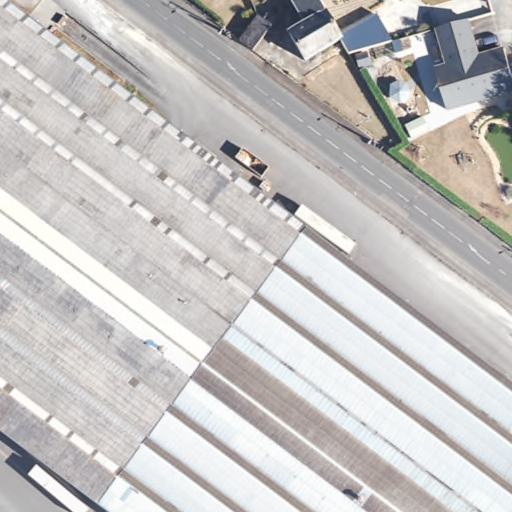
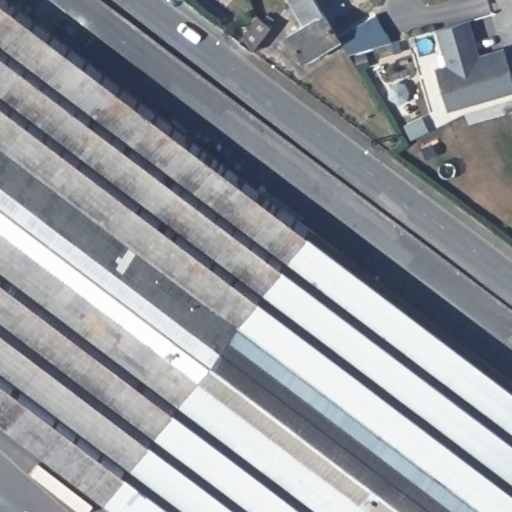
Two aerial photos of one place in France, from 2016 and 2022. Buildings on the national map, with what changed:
unchanged [(301,67),(283,39),(301,29),(283,0),(309,0),(336,45),(301,67)]
unchanged [(97,512),(0,439),(0,9),(512,396),(512,512),(97,512)]
unchanged [(258,16),(272,27),(253,52),(240,42),(258,16)]
unchanged [(273,21),(271,24),(265,19),(267,16),(273,21)]
unchanged [(478,57),(503,49),(512,78),(512,92),(448,110),(436,69),(448,65),(437,29),(450,26),(468,21),(478,57)]
unchanged [(366,55),(367,62),(359,64),(357,56),(366,55)]

